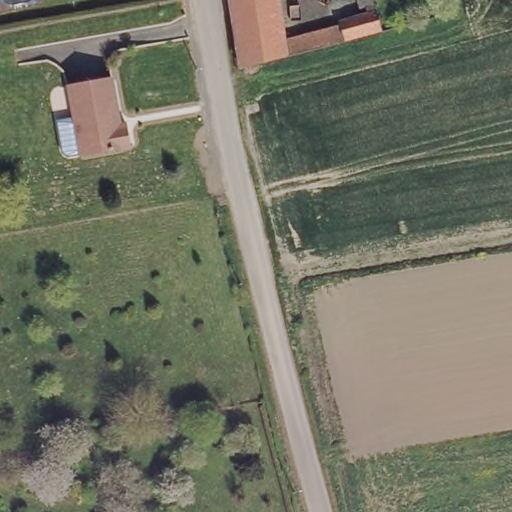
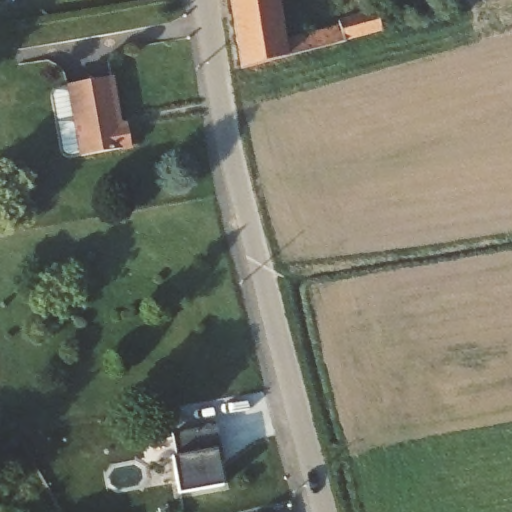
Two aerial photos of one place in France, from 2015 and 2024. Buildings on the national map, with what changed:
unchanged [(326,13),(325,7),(361,0),(373,0),(379,25),(343,35),(238,62),(228,0),(276,0),(280,26),(326,13)]
unchanged [(69,85),(110,78),(116,112),(75,118),(69,85)]
unchanged [(116,112),(120,126),(130,124),(133,147),(81,156),(75,118),(116,112)]
new [(169,434),(214,425),(218,449),(221,462),(216,463),(220,485),(176,494),(169,457),(173,456),(169,434)]

